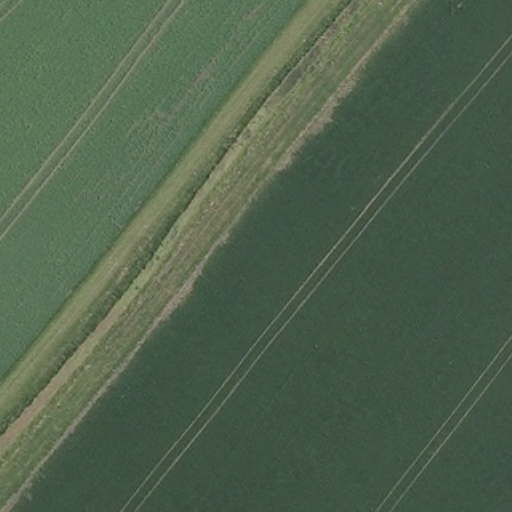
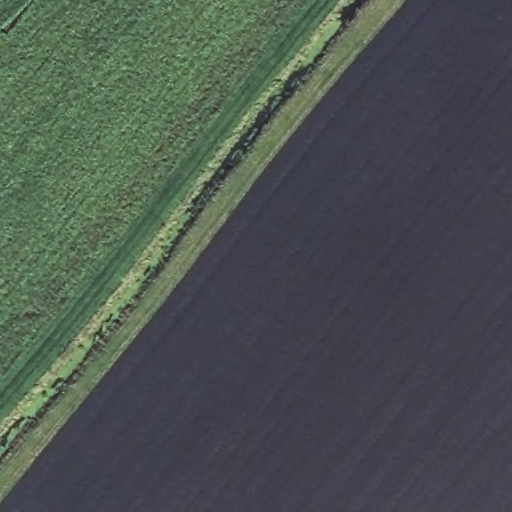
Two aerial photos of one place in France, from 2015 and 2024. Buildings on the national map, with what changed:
[]

